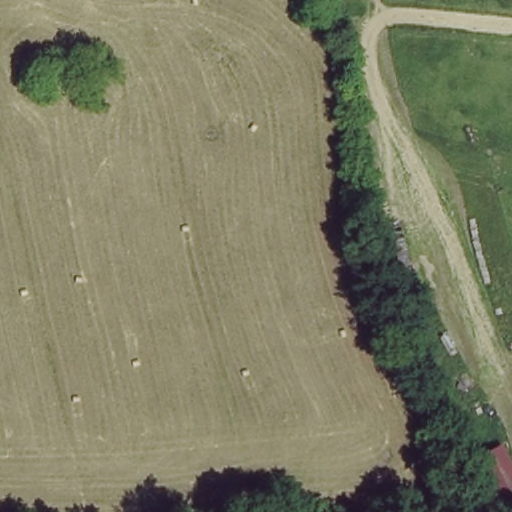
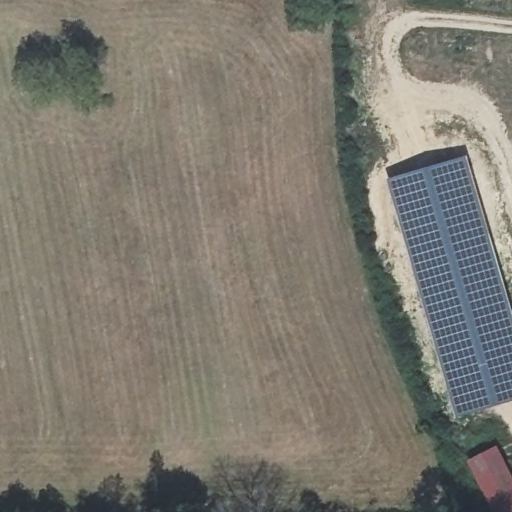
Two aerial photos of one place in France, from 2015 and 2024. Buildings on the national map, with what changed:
new [(467,155),(487,221),(512,307),(512,401),(455,418),(408,257),(387,177),(467,155)]
new [(497,444),(512,474),(512,512),(493,512),(466,460),(497,444)]

